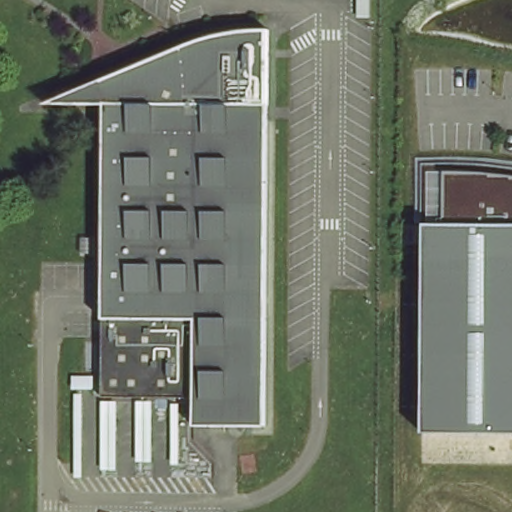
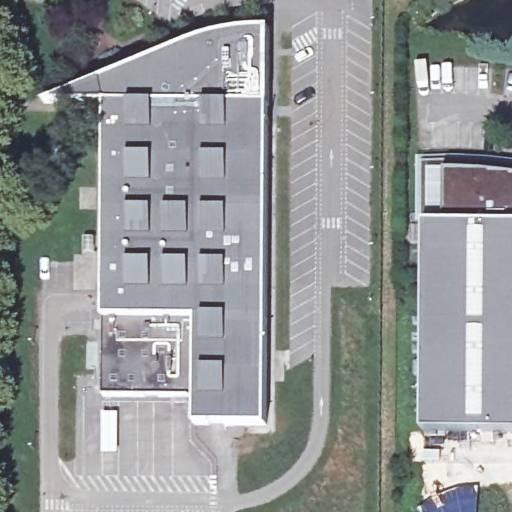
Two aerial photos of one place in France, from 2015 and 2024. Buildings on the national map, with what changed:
unchanged [(228,31),(238,30),(248,29),(260,29),(272,29),(269,338),(268,365),(268,425),(196,425),(196,400),(196,398),(151,397),(103,396),(106,104),(47,102),(214,35),(222,32),(228,31)]
unchanged [(512,162),(512,434),(427,431),(426,228),(420,225),(422,159),(471,158),(512,162)]
new [(438,495),(460,488),(476,485),(477,512),(422,512),(419,507),(431,498),(438,495)]

